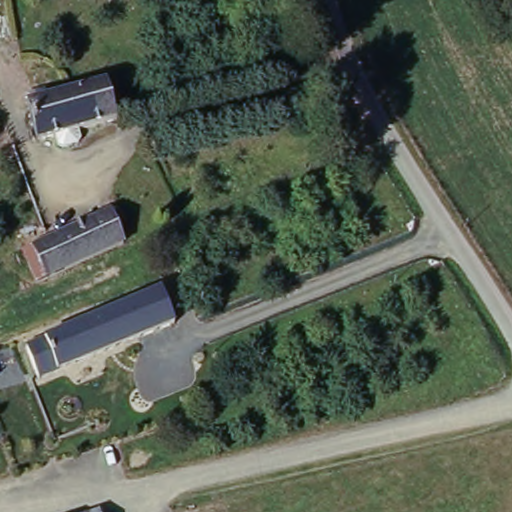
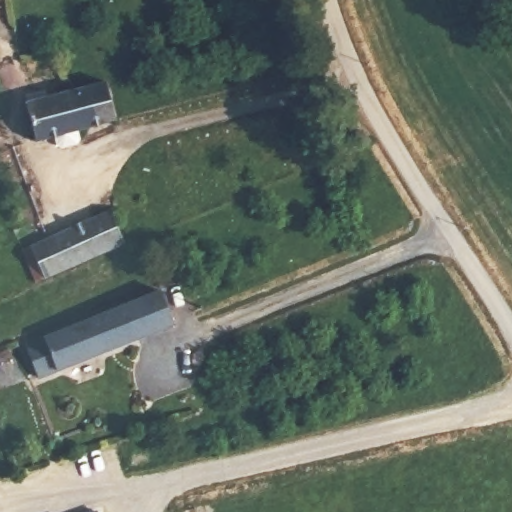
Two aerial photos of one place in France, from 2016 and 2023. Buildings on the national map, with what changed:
unchanged [(81,124),(84,131),(79,139),(65,142),(59,138),(57,130),(37,135),(34,118),(30,98),(107,77),(117,114),(81,124)]
unchanged [(41,277),(28,246),(46,239),(115,208),(127,239),(41,277)]
unchanged [(26,344),(164,290),(175,324),(39,379),(26,344)]
unchanged [(100,506),(102,512),(82,512),(100,506)]

